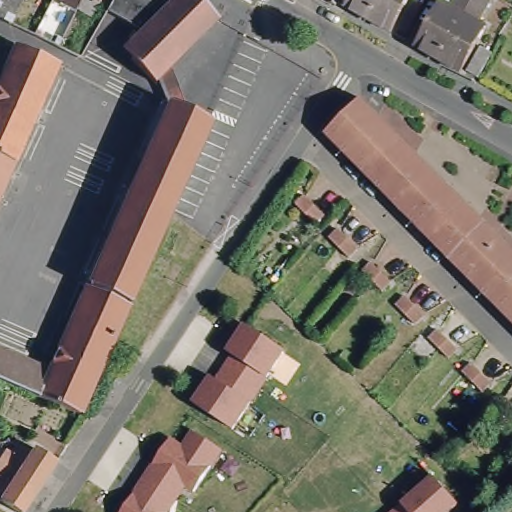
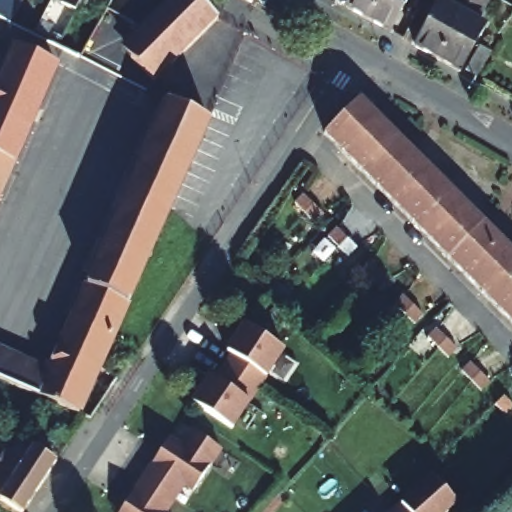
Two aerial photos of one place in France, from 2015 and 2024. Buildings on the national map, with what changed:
unchanged [(0,16),(0,0),(20,0),(21,1),(10,21),(2,17),(0,16)]
unchanged [(71,0),(81,0),(76,10),(68,5),(71,0)]
unchanged [(82,13),(76,10),(81,0),(99,0),(92,11),(82,13)]
unchanged [(142,28),(133,24),(106,9),(111,0),(168,0),(169,1),(170,0),(203,0),(219,16),(156,80),(133,58),(135,53),(127,44),(142,28)]
unchanged [(348,8),(352,0),(380,0),(368,20),(348,8)]
unchanged [(368,20),(380,0),(409,0),(390,32),(368,20)]
unchanged [(411,43),(435,0),(444,0),(445,1),(445,0),(465,0),(434,55),(411,43)]
unchanged [(465,0),(481,0),(472,18),(480,21),(455,68),(434,55),(465,0)]
unchanged [(474,42),(487,49),(473,73),(461,66),(474,42)]
unchanged [(21,44),(60,61),(18,157),(21,159),(0,208),(0,90),(21,44)]
unchanged [(377,184),(359,166),(342,149),(333,139),(324,130),(342,111),(359,95),(378,114),(395,131),(412,149),(426,163),(430,167),(448,185),(465,202),(482,219),(500,238),(512,250),(512,321),(500,309),(482,291),(465,273),(447,256),(430,238),(412,221),(407,215),(395,203),(394,201),(377,184)]
unchanged [(54,367),(108,247),(161,126),(172,101),(178,104),(213,120),(91,395),(84,411),(64,403),(45,394),(1,376),(0,375),(0,343),(54,367)]
unchanged [(313,202),(322,211),(314,220),(305,211),(301,207),(295,201),(304,193),(308,197),(313,202)]
unchanged [(345,235),(353,243),(355,245),(347,253),(344,251),(337,244),(334,241),(328,235),(336,226),(342,232),(345,235)]
unchanged [(379,269),(388,278),(380,287),(371,278),(368,276),(361,268),(369,259),(376,266),(379,269)]
unchanged [(395,302),(403,293),(412,302),(421,311),(413,320),(405,312),(403,311),(395,302)]
unchanged [(234,427),(191,402),(240,325),(282,351),(234,427)]
unchanged [(437,345),(428,336),(436,327),(445,335),(450,340),(455,346),(446,354),(443,351),(437,345)]
unchanged [(479,388),(472,380),(470,378),(461,369),(469,360),(478,369),(480,371),(488,379),(479,388)]
unchanged [(501,394),(511,404),(504,412),(493,402),(501,394)]
unchanged [(161,436),(177,444),(186,427),(222,447),(196,490),(188,485),(171,512),(114,512),(161,436)]
unchanged [(1,444),(11,450),(15,445),(26,452),(35,440),(57,455),(40,480),(0,453),(0,445),(1,444)]
unchanged [(38,483),(22,506),(1,492),(0,493),(0,468),(1,467),(0,466),(0,453),(40,480),(38,483)]
unchanged [(454,510),(451,512),(384,512),(425,477),(454,510)]

